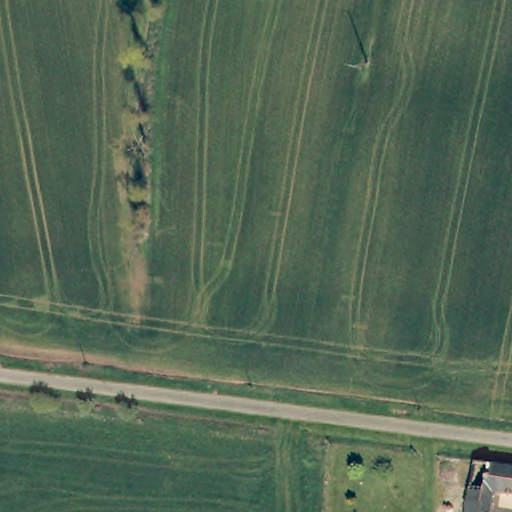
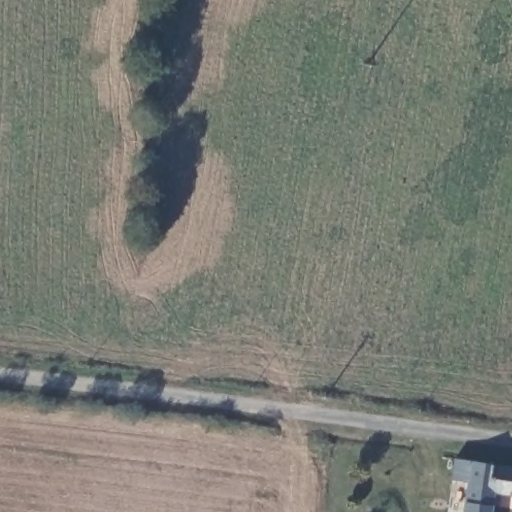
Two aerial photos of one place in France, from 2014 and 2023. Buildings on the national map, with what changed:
unchanged [(473,456),(478,457),(494,460),(497,462),(495,493),(493,512),(470,512),(473,456)]
unchanged [(512,495),(495,493),(497,462),(512,463),(512,495)]

